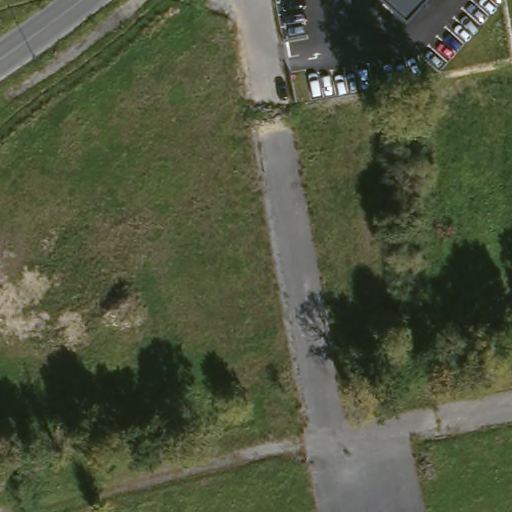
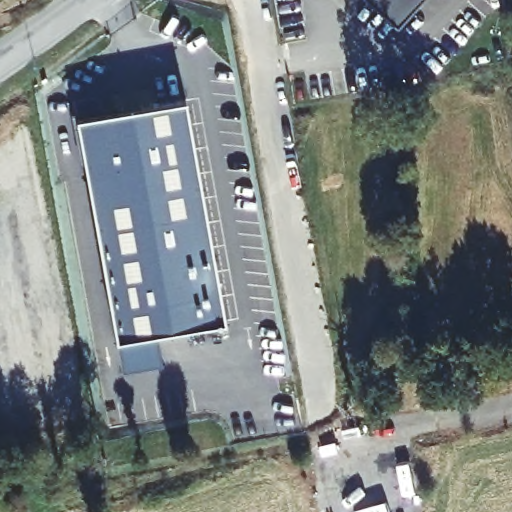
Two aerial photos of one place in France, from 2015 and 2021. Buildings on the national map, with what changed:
unchanged [(425,0),(404,23),(379,0),(425,0)]
new [(116,339),(76,118),(184,99),(223,320),(156,334),(162,364),(123,371),(116,339)]

